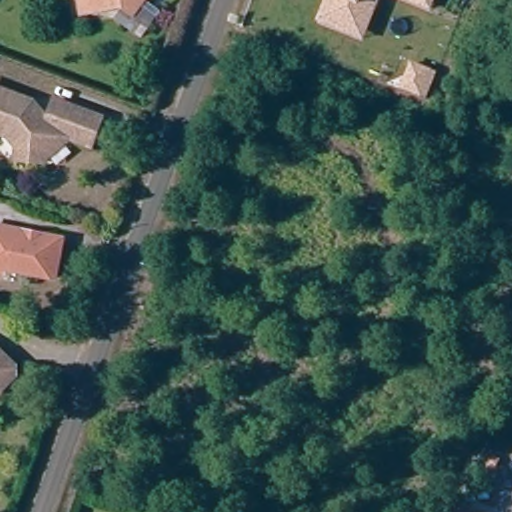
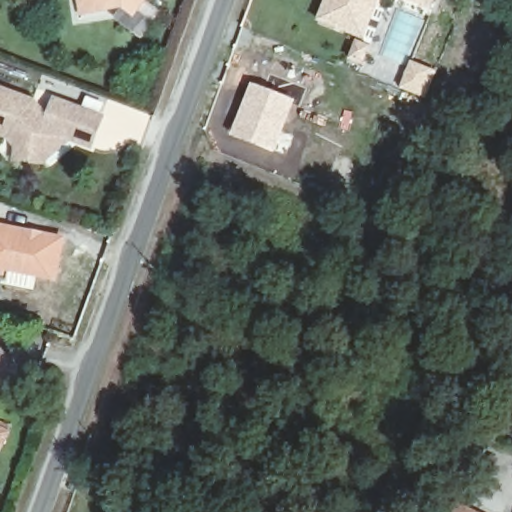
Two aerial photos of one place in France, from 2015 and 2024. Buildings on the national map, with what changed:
unchanged [(86,12),(84,0),(143,0),(133,13),(125,7),(86,12)]
unchanged [(323,22),(317,19),(324,0),(376,0),(374,5),(361,37),(345,30),(323,22)]
unchanged [(427,6),(413,0),(430,0),(427,6)]
new [(355,46),(368,51),(361,69),(349,64),(355,46)]
unchanged [(420,98),(401,91),(410,67),(430,75),(420,98)]
new [(250,83),(295,101),(273,154),(229,135),(250,83)]
unchanged [(18,153),(16,144),(7,132),(0,130),(0,86),(34,99),(49,112),(54,97),(101,114),(91,142),(72,136),(44,154),(18,153)]
unchanged [(57,277),(5,267),(5,272),(0,271),(0,226),(65,237),(57,277)]
unchanged [(12,372),(0,385),(0,350),(13,362),(12,372)]
unchanged [(469,512),(455,512),(457,507),(469,512)]

